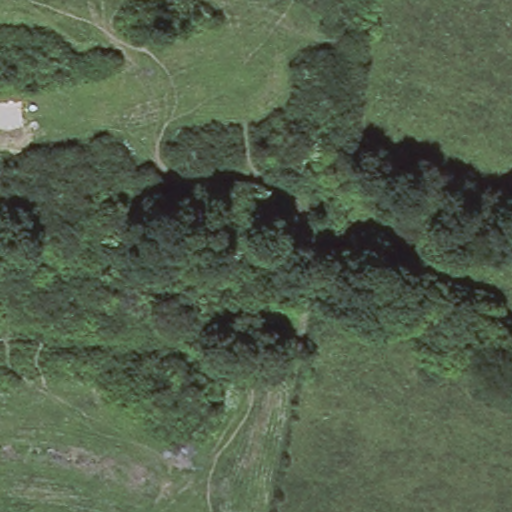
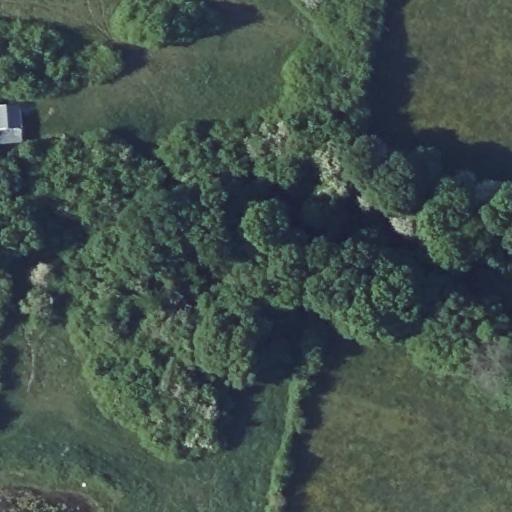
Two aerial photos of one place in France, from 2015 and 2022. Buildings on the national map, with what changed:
new [(0,143),(0,106),(21,105),(33,104),(33,110),(22,110),(23,128),(24,142),(0,143)]

